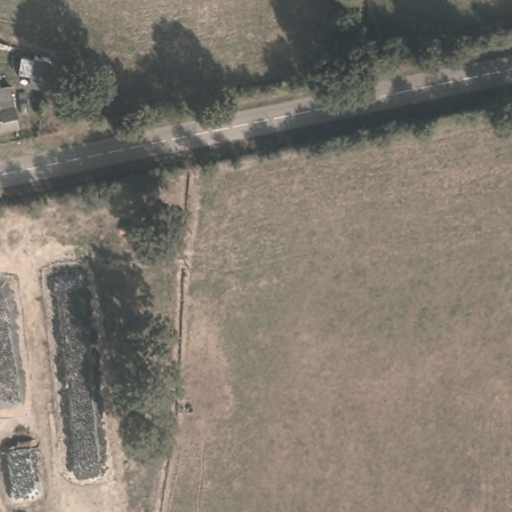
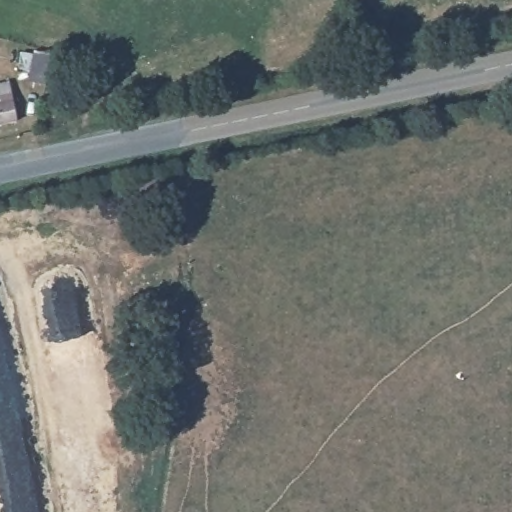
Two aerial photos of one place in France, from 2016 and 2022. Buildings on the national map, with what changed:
unchanged [(0,124),(0,88),(6,86),(12,121),(0,124)]

